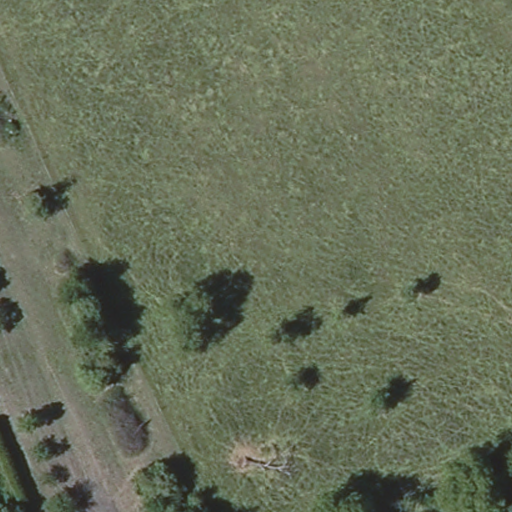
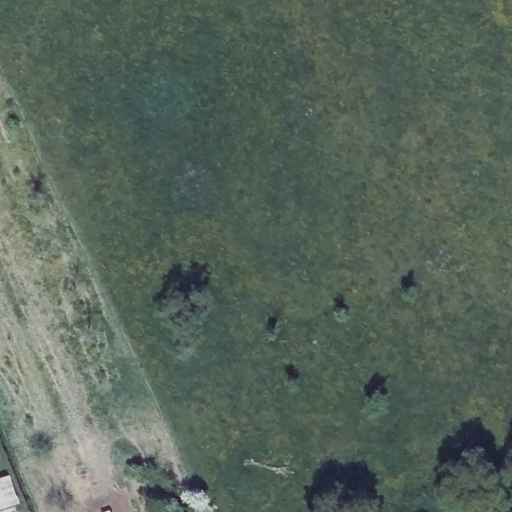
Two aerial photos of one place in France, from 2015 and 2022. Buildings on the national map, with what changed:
[]

